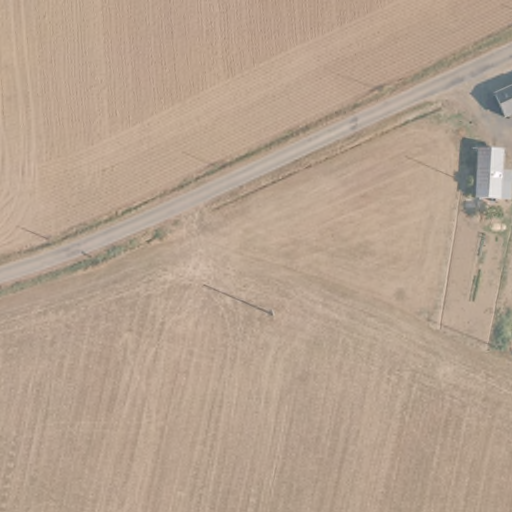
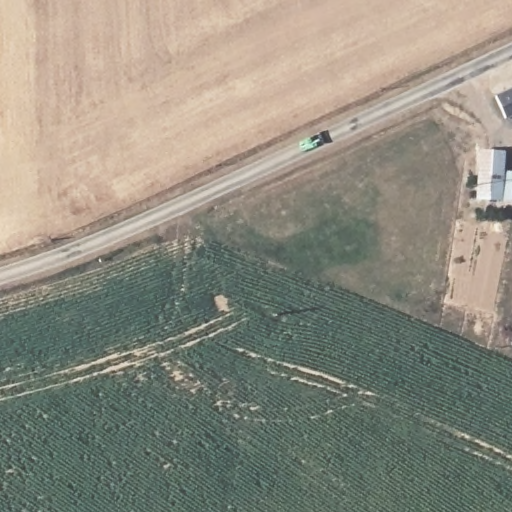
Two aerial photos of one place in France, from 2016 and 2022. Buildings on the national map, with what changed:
unchanged [(512,87),(512,115),(494,122),(486,99),(511,88),(512,87)]
unchanged [(494,153),(495,185),(504,184),(505,202),(478,204),(476,154),(494,153)]

